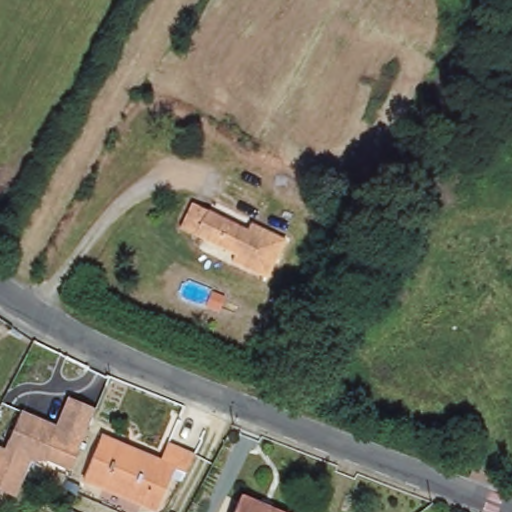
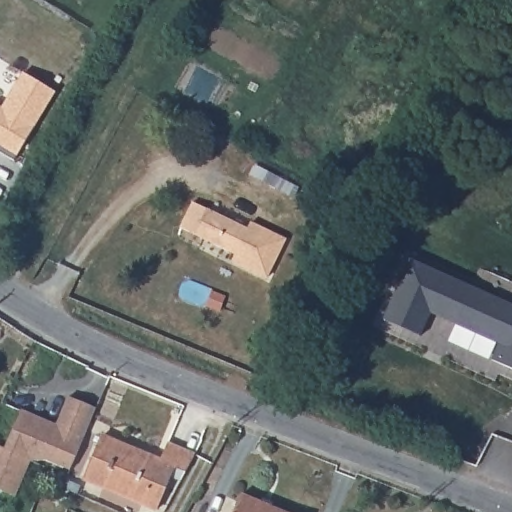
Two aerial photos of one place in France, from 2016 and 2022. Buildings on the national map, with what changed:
unchanged [(247,231),(251,224),(285,241),(265,279),(231,262),(234,256),(180,228),(192,203),(247,231)]
new [(430,313),(420,336),(383,320),(410,260),(512,306),(512,369),(499,364),(492,360),(499,344),(452,323),(430,313)]
unchanged [(70,470),(48,460),(31,461),(16,498),(0,491),(0,447),(6,450),(22,411),(57,426),(69,398),(96,409),(70,470)]
unchanged [(175,468),(156,510),(139,504),(140,501),(105,486),(103,488),(83,479),(102,436),(175,468)]
unchanged [(279,512),(234,512),(241,496),(279,512)]

